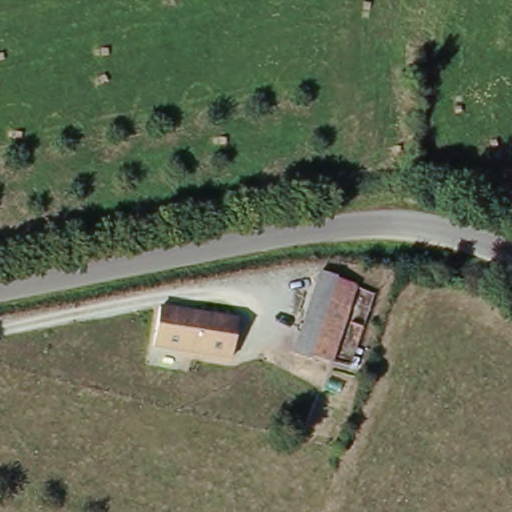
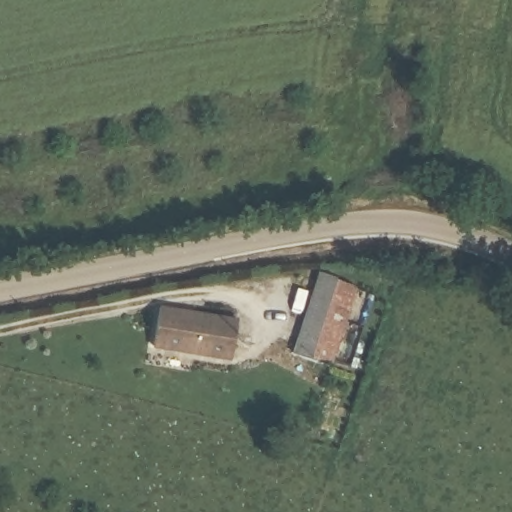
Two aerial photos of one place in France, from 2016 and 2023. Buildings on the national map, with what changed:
unchanged [(296,357),(322,281),(357,290),(332,372),(296,357)]
unchanged [(236,321),(231,361),(153,347),(158,306),(236,321)]

